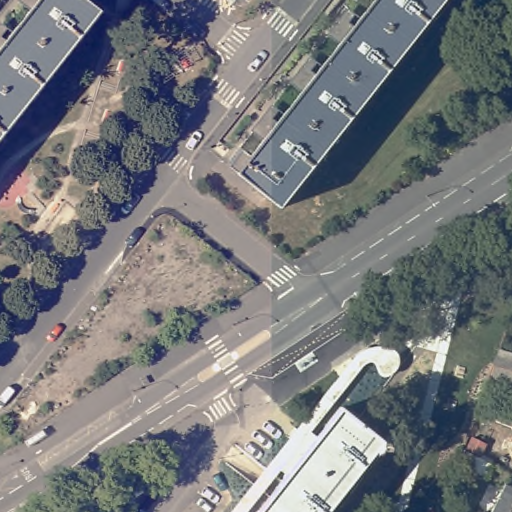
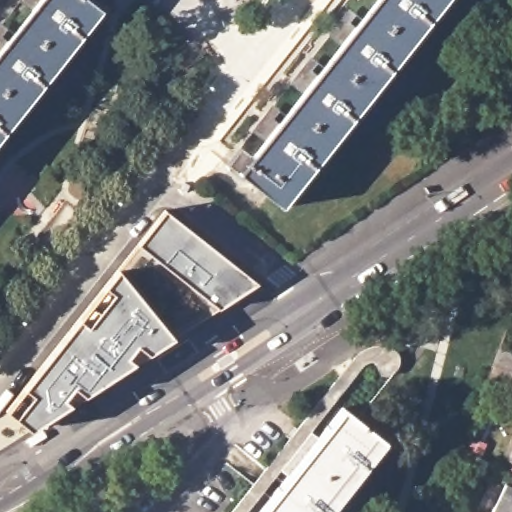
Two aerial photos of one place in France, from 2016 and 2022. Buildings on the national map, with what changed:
unchanged [(106,10),(0,144),(0,31),(2,34),(4,35),(13,42),(37,10),(29,4),(27,2),(25,0),(93,0),(106,10)]
unchanged [(271,139),(262,131),(258,129),(272,111),(275,114),(285,122),(310,91),(300,83),(297,80),(310,64),(313,66),(323,74),(348,43),(337,35),(335,32),(348,15),(351,17),(362,26),(382,0),(451,0),(287,206),(266,190),(245,172),(271,139)]
new [(163,210),(258,285),(41,425),(22,428),(5,411),(163,210)]
unchanged [(492,368),(497,353),(512,358),(512,390),(486,382),(492,368)]
unchanged [(386,441),(330,512),(260,512),(342,408),(386,441)]
unchanged [(486,462),(478,477),(455,466),(462,450),(486,462)]
unchanged [(512,489),(512,512),(495,512),(507,487),(512,489)]

